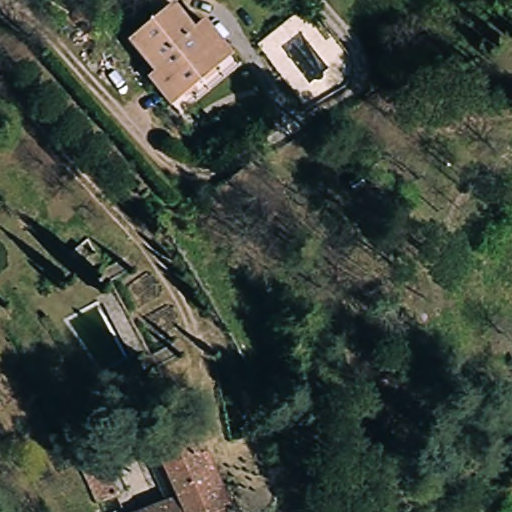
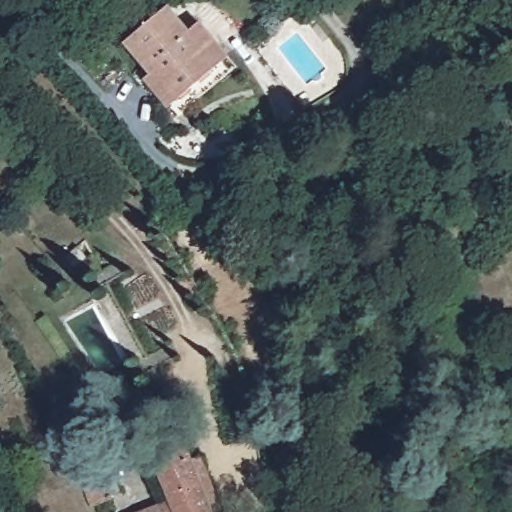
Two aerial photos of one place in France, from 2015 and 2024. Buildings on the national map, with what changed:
unchanged [(143,81),(150,75),(123,42),(170,6),(192,32),(204,18),(233,58),(169,110),(143,81)]
unchanged [(127,472),(105,482),(85,431),(97,427),(107,423),(123,461),(127,472)]
unchanged [(188,503),(182,485),(169,452),(180,447),(197,440),(226,512),(155,512),(182,505),(188,503)]

